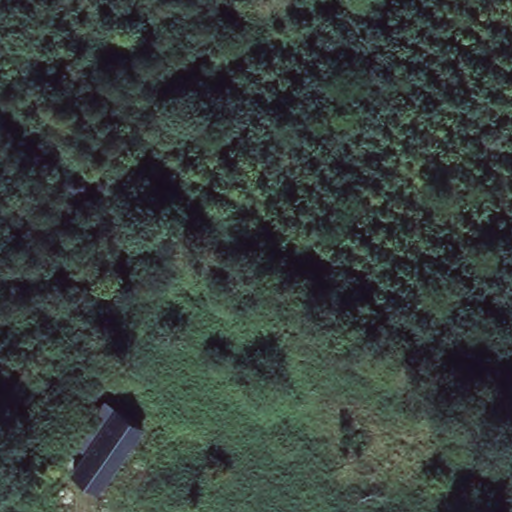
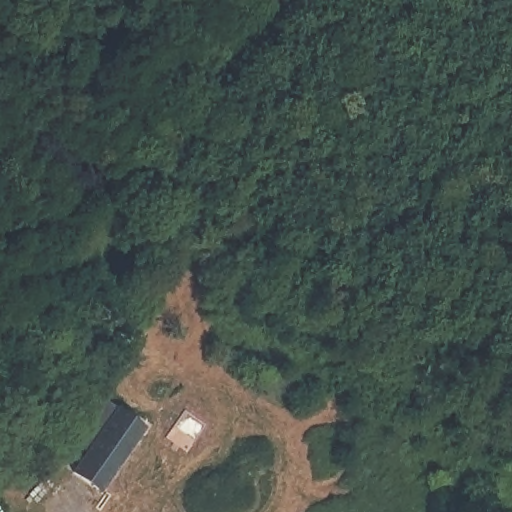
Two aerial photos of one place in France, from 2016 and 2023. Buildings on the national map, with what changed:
unchanged [(145,425),(101,488),(69,467),(83,447),(76,442),(107,398),(145,425)]

